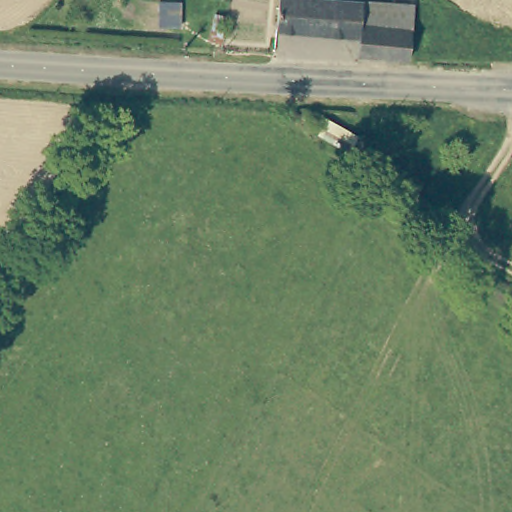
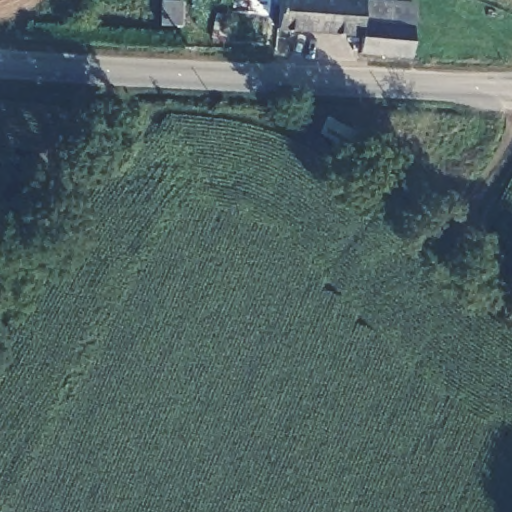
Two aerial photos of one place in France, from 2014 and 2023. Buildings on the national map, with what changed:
unchanged [(407,59),(357,54),(359,36),(276,29),(279,0),(356,0),(412,4),(410,24),(407,59)]
unchanged [(225,15),(222,41),(212,40),(215,14),(225,15)]
unchanged [(356,134),(350,150),(318,134),(325,117),(356,134)]

